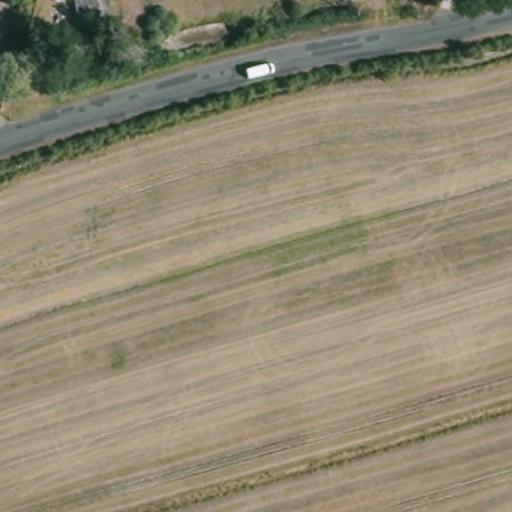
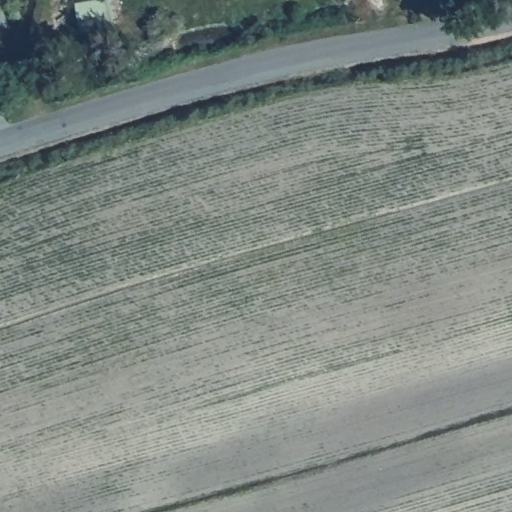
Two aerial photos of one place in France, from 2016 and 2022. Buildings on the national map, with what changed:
unchanged [(110,16),(77,22),(73,0),(106,0),(110,16)]

